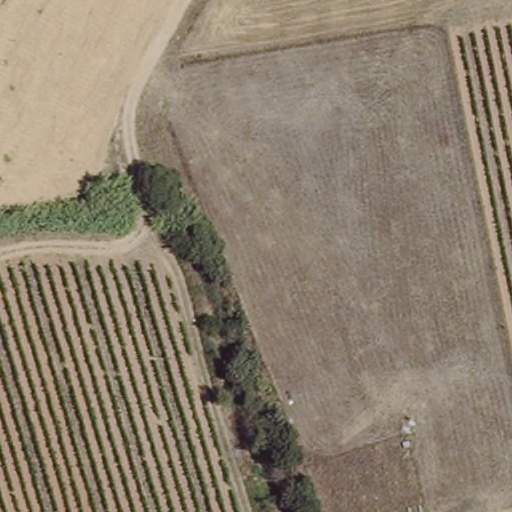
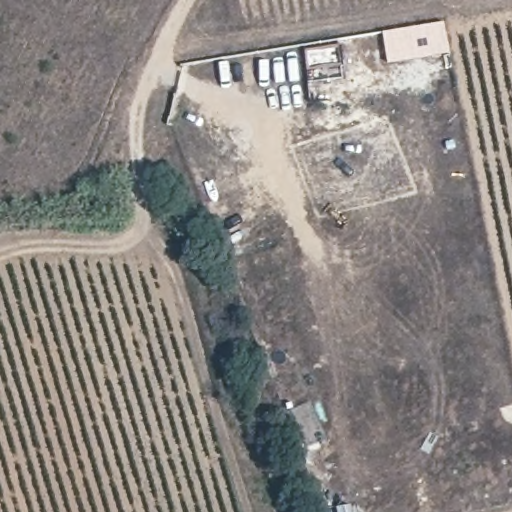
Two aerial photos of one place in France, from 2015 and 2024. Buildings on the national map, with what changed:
new [(388,61),(383,32),(444,21),(450,51),(388,61)]

